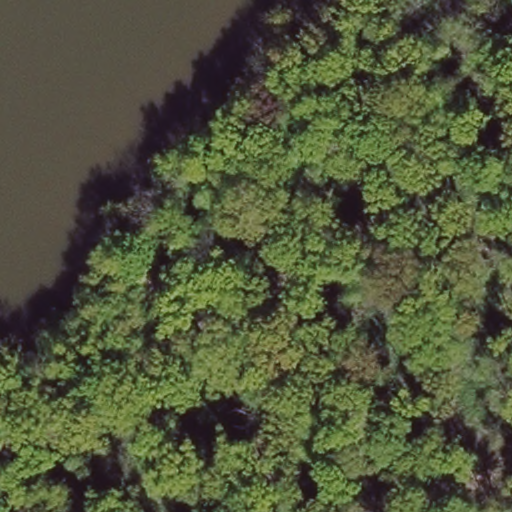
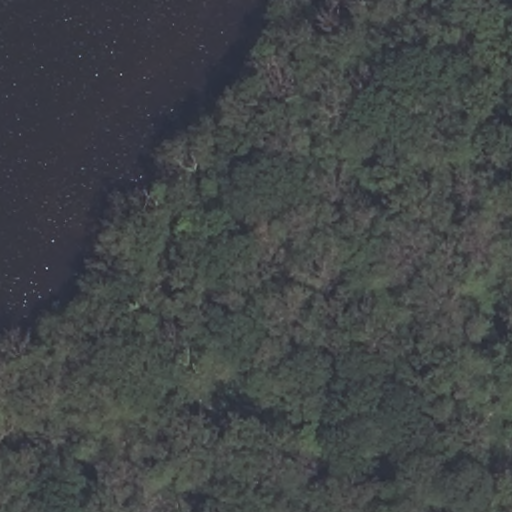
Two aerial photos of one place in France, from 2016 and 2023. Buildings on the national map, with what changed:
[]

